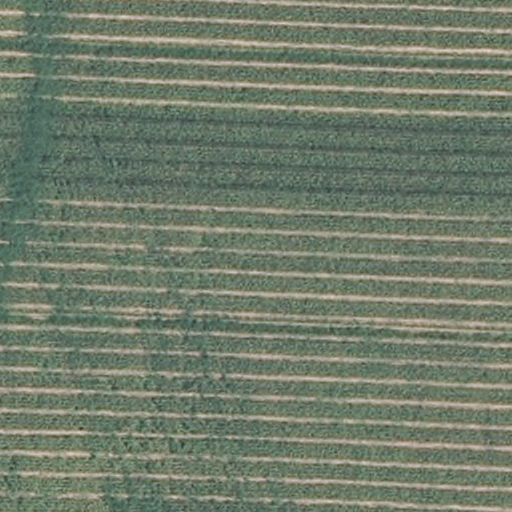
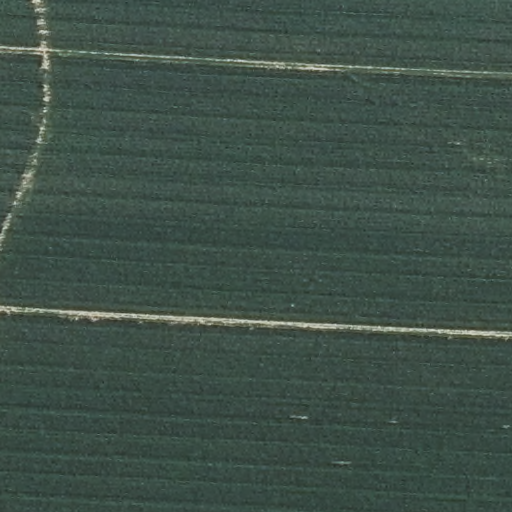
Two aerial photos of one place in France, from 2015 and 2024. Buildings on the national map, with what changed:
[]

